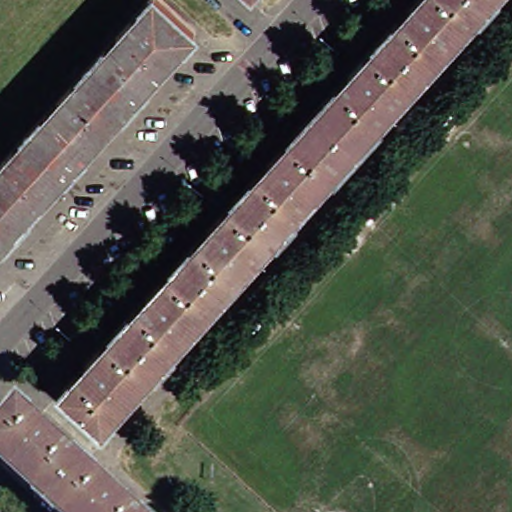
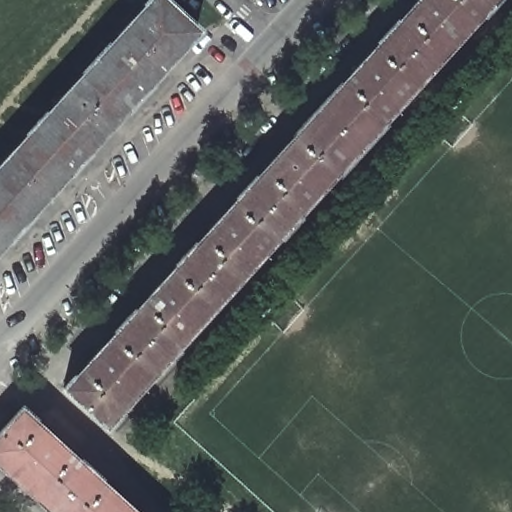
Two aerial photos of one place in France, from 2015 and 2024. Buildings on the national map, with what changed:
unchanged [(150,0),(184,31),(91,135),(0,236),(0,153),(138,0),(150,0)]
unchanged [(405,0),(480,0),(97,423),(56,385),(371,37),(405,0)]
unchanged [(0,474),(0,419),(9,409),(124,512),(42,512),(0,474)]

